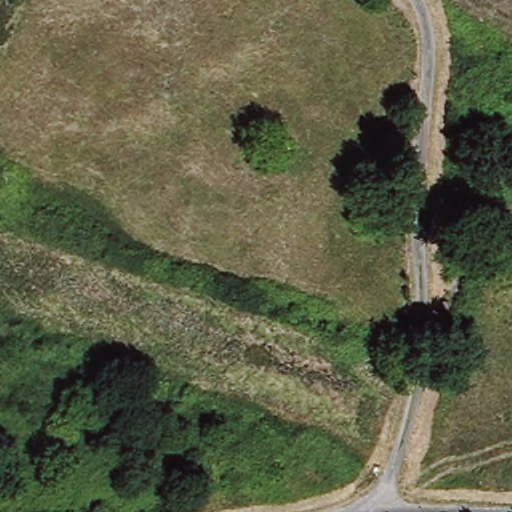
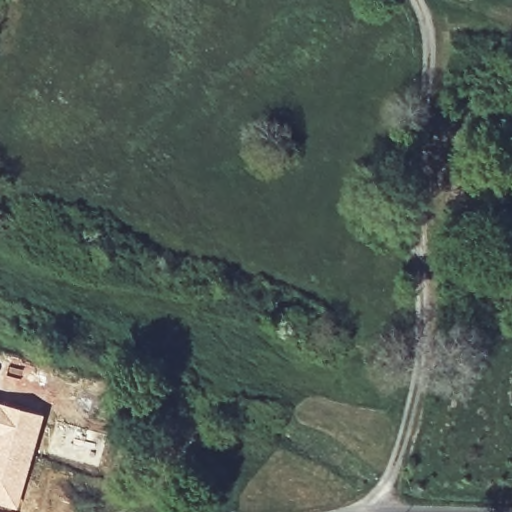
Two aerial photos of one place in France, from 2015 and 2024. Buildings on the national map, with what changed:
new [(18,511),(0,505),(0,402),(45,415),(18,511)]

